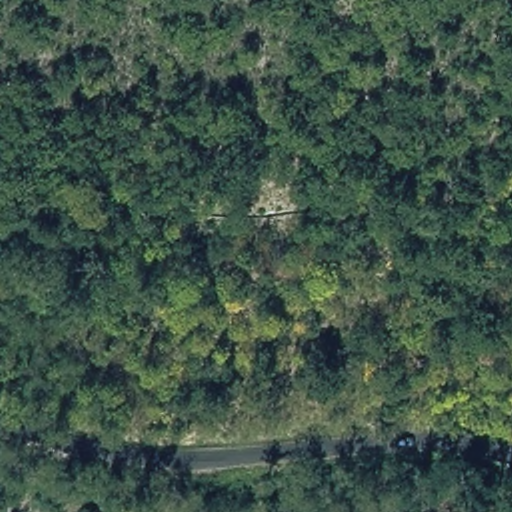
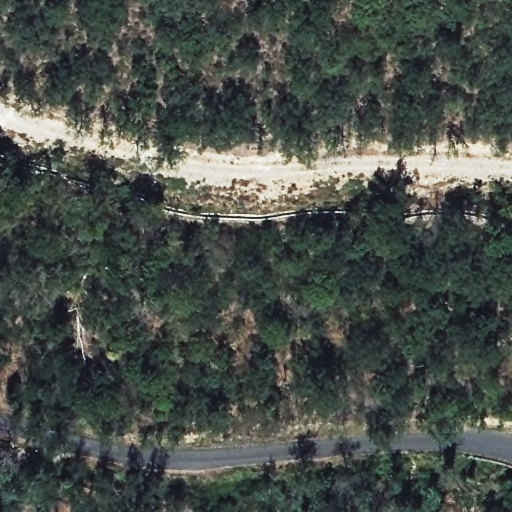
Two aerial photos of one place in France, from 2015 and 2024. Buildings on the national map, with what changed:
[]

